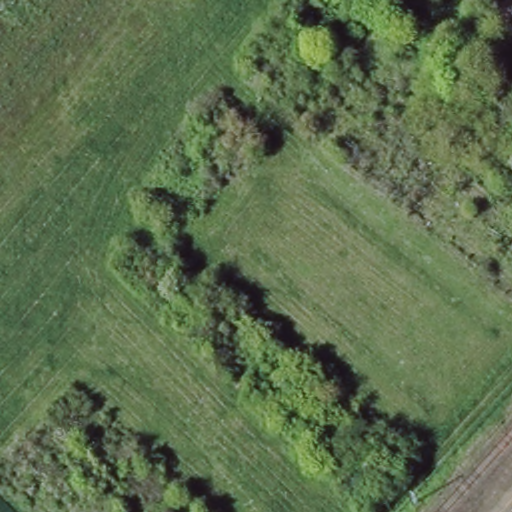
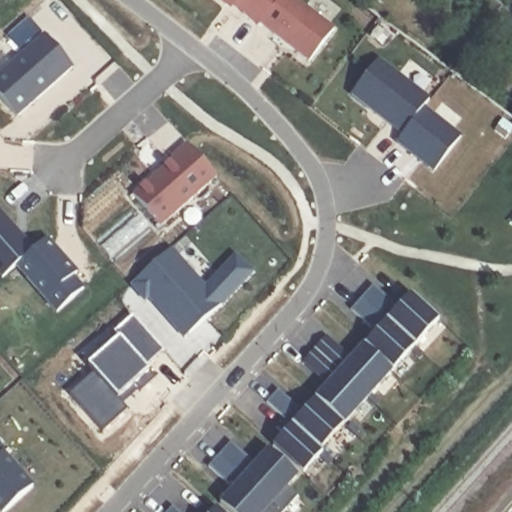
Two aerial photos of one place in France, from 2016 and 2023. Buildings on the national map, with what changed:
new [(334,28),(309,62),(261,24),(259,26),(234,7),(231,10),(218,0),(298,0),(334,28)]
new [(72,67),(17,116),(0,96),(0,71),(45,35),(72,67)]
new [(380,59),(430,98),(423,106),(461,135),(433,172),(395,141),(402,134),(350,94),(380,59)]
new [(177,156),(175,155),(191,141),(221,172),(165,222),(137,190),(177,156)]
new [(7,274),(0,267),(0,204),(39,246),(7,274)]
new [(39,246),(47,238),(77,272),(73,276),(83,288),(57,311),(16,266),(39,246)]
new [(255,272),(222,307),(184,339),(149,298),(145,302),(131,284),(173,247),(205,282),(235,253),(255,272)]
new [(399,305),(411,293),(439,318),(318,450),(321,452),(287,488),(297,497),(282,512),(231,512),(219,500),(232,486),(210,464),(231,440),(255,462),(291,422),(267,401),(279,388),(303,409),(327,382),(302,360),(327,335),(350,357),(376,331),(352,308),(374,284),(399,305)]
new [(8,512),(1,512),(0,511),(0,449),(35,488),(8,512)]
new [(180,512),(167,512),(173,505),(180,512)]
new [(221,512),(212,512),(216,507),(221,512)]

